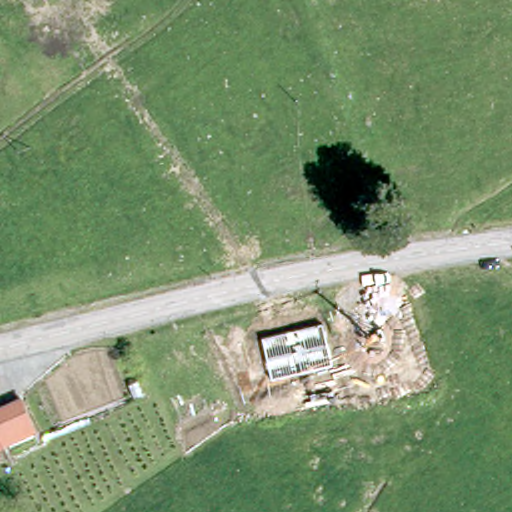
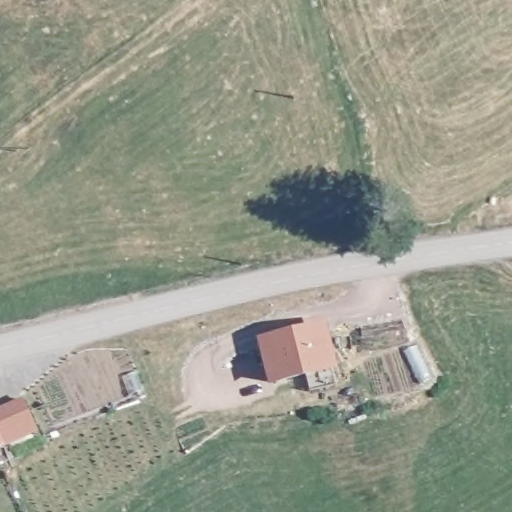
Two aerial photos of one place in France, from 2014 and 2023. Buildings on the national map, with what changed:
new [(255,336),(326,320),(338,368),(267,385),(255,336)]
new [(0,405),(21,396),(36,432),(4,447),(0,437),(0,405)]
unchanged [(0,449),(0,437),(4,447),(0,449)]

